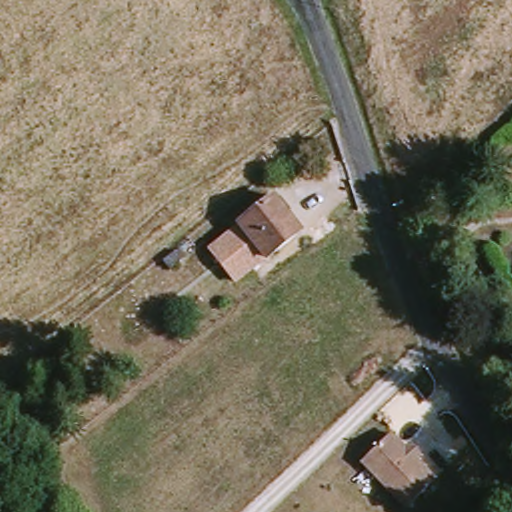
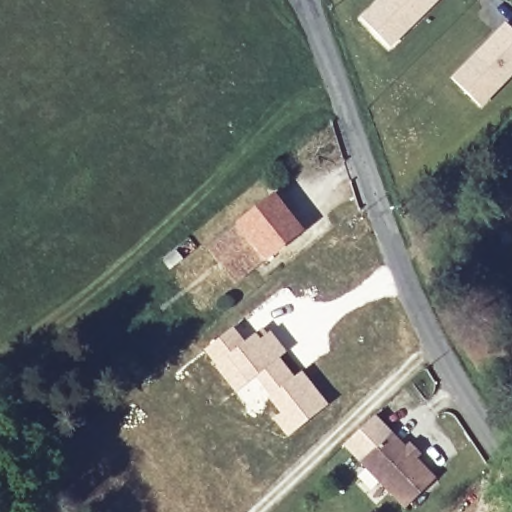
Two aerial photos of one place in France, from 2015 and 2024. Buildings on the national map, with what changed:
new [(381,0),(437,0),(388,47),(361,20),(381,0)]
new [(507,25),(512,30),(512,75),(481,106),(453,79),(507,25)]
unchanged [(306,230),(272,257),(244,222),(277,196),(306,230)]
unchanged [(208,249),(235,224),(241,219),(244,222),(272,257),(266,261),(235,285),(208,249)]
new [(232,325),(245,340),(256,331),(260,336),(267,330),(288,351),(281,358),(295,375),(302,370),(329,404),(287,437),(272,418),(278,413),(268,400),(252,413),(202,350),(232,325)]
unchanged [(403,505),(358,459),(387,430),(402,445),(406,441),(416,451),(412,455),(432,476),(403,505)]

